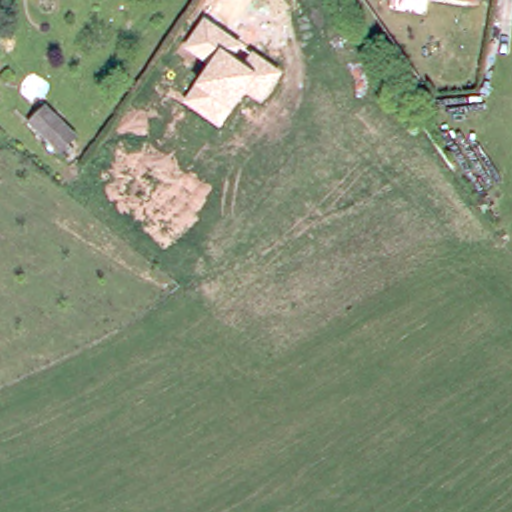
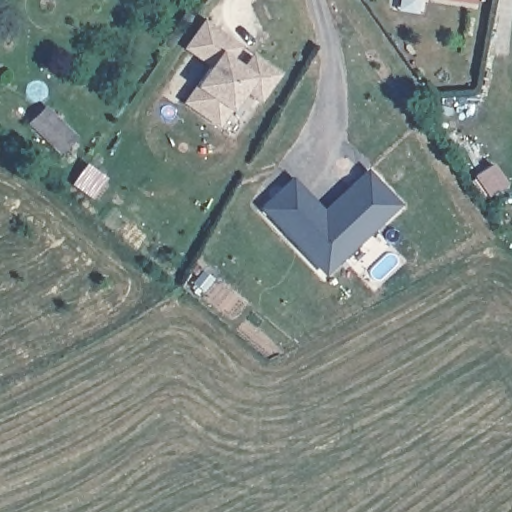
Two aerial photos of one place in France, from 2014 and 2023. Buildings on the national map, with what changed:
unchanged [(467,6),(428,0),(468,0),(467,6)]
unchanged [(239,45),(250,54),(253,52),(282,74),(262,105),(245,94),(220,126),(182,102),(209,64),(182,47),(203,19),(239,45)]
unchanged [(56,150),(34,129),(28,124),(42,109),(47,114),(70,135),(56,150)]
new [(108,177),(93,197),(72,182),(89,164),(108,177)]
new [(324,209),(366,168),(402,205),(324,277),(259,206),(292,176),(324,209)]

